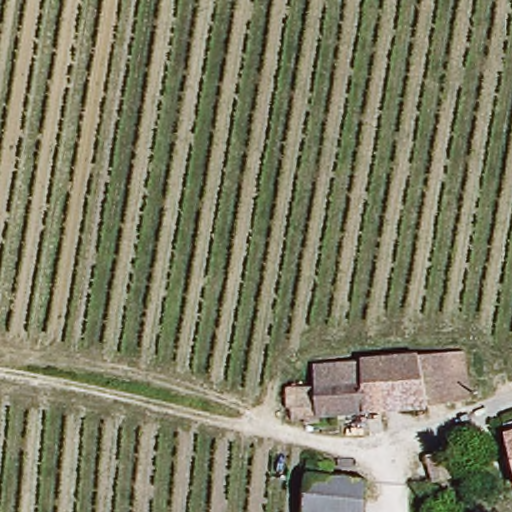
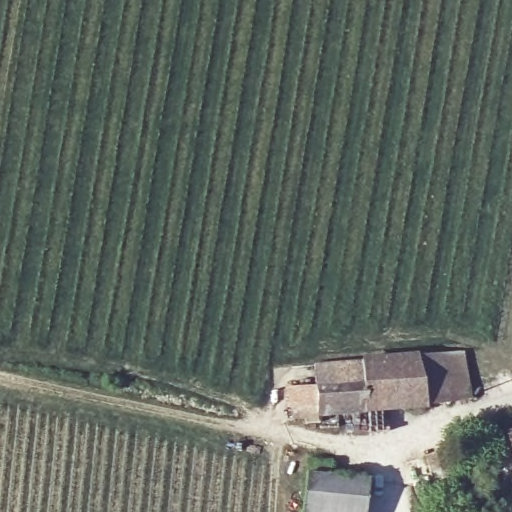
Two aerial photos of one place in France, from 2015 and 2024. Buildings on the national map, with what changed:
unchanged [(415,354),(460,348),(471,398),(427,406),(415,354)]
unchanged [(291,414),(286,414),(285,389),(310,388),(307,371),(415,354),(427,406),(320,422),(319,427),(305,427),(303,423),(294,422),(291,414)]
unchanged [(512,437),(512,463),(505,438),(512,437)]
unchanged [(305,477),(370,484),(369,497),(302,503),(305,477)]
unchanged [(369,497),(367,512),(301,512),(302,503),(369,497)]

